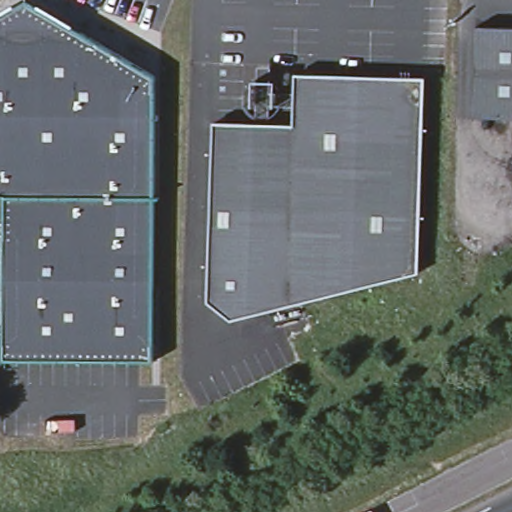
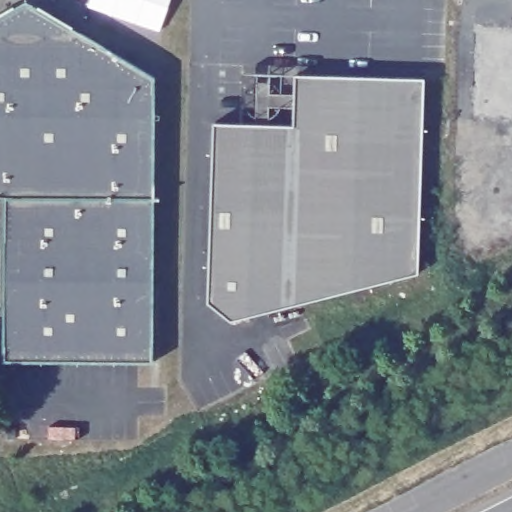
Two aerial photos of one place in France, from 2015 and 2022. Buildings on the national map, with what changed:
unchanged [(76,36),(0,36),(0,19),(7,15),(43,16),(76,36)]
demolished [(473,30),(512,31),(512,123),(469,121),(473,30)]
unchanged [(151,80),(149,365),(1,364),(3,201),(0,201),(0,36),(76,36),(151,80)]
unchanged [(209,126),(249,126),(253,70),(269,70),(268,91),(286,93),(288,75),(420,80),(413,274),(221,323),(201,304),(209,126)]

